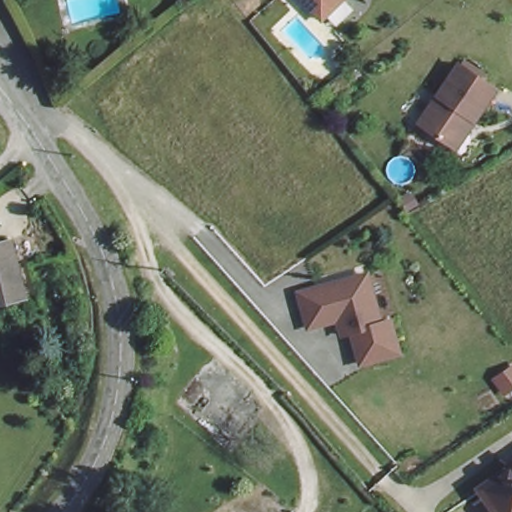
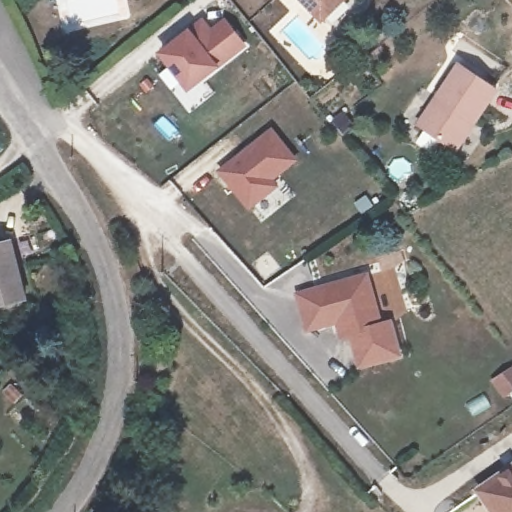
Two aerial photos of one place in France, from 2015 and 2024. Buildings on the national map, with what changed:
unchanged [(313,17),(295,0),(330,0),(313,17)]
new [(191,33),(188,29),(204,17),(211,26),(227,16),(244,42),(212,64),(218,74),(186,95),(158,57),(191,33)]
unchanged [(471,117),(467,115),(449,142),(415,121),(454,60),(492,83),(471,117)]
new [(216,171),(271,128),(297,160),(273,182),(277,186),(248,209),(216,171)]
unchanged [(0,305),(0,242),(6,239),(27,296),(0,305)]
unchanged [(398,321),(407,354),(368,364),(359,333),(349,336),(346,320),(316,328),(306,293),(337,285),(374,274),(378,285),(388,324),(398,321)]
unchanged [(512,373),(512,381),(508,375),(512,373)]
unchanged [(499,512),(479,485),(512,464),(512,512),(499,512)]

